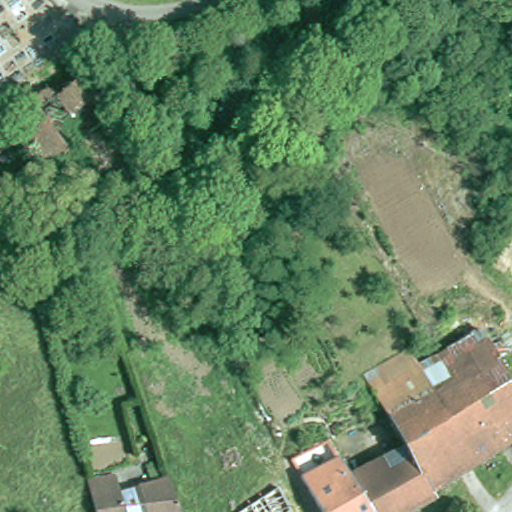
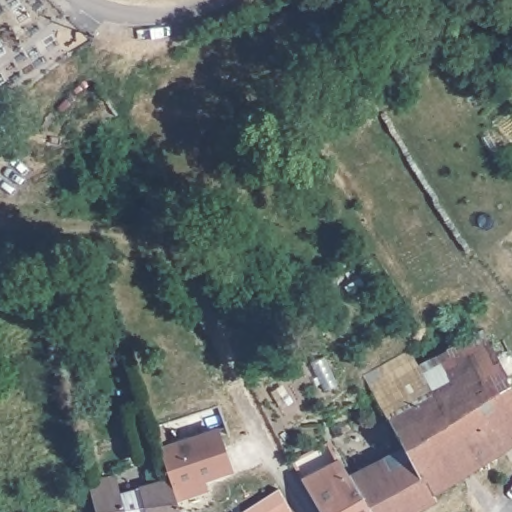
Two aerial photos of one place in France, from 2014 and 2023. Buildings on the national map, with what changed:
unchanged [(510,378),(507,379),(512,389),(512,450),(507,454),(476,472),(423,372),(485,336),(510,378)]
unchanged [(414,354),(416,359),(423,372),(476,472),(452,486),(436,495),(439,503),(422,512),(321,512),(293,465),(330,446),(346,473),(382,455),(387,463),(407,450),(367,380),(414,354)]
new [(233,470),(205,479),(209,490),(186,497),(185,492),(176,494),(172,483),(160,444),(218,427),(233,470)]
unchanged [(96,512),(92,496),(90,488),(118,481),(122,495),(172,483),(181,512),(96,512)]
new [(293,512),(241,512),(279,488),(293,512)]

